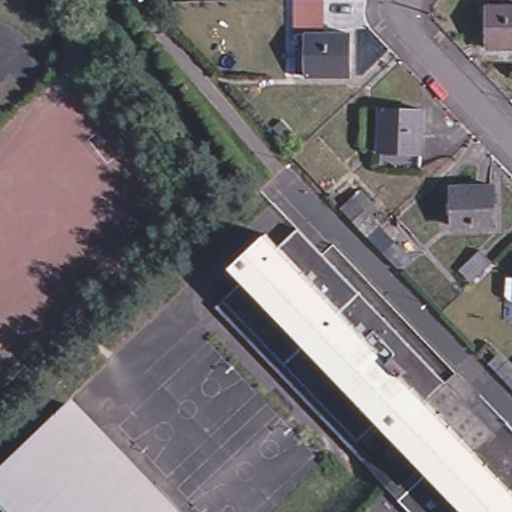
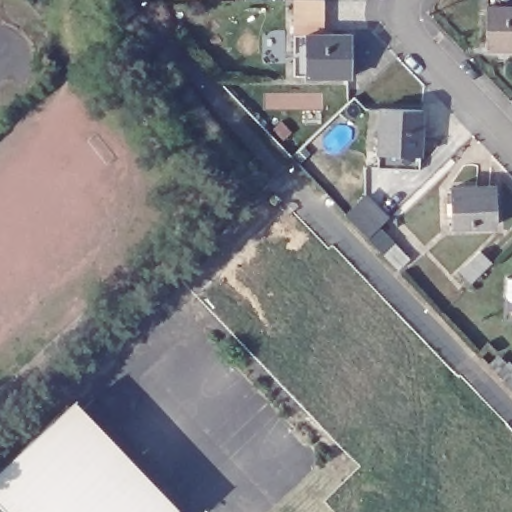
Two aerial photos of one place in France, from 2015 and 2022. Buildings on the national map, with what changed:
unchanged [(489,46),(490,5),(512,6),(512,47),(489,46)]
unchanged [(352,78),(310,78),(297,78),(298,37),(311,37),(353,37),(352,78)]
unchanged [(392,155),(376,155),(377,111),(392,111),(435,112),(435,156),(392,155)]
unchanged [(456,226),(456,189),(500,189),(499,227),(456,226)]
unchanged [(370,240),(357,225),(345,213),(358,201),(370,215),(383,227),(400,245),(412,259),(400,270),(387,257),(370,240)]
demolished [(303,232),(450,387),(431,405),(283,251),(303,232)]
demolished [(283,251),(431,405),(512,490),(512,512),(467,512),(429,472),(379,420),(250,285),(237,271),(270,239),(283,251)]
unchanged [(432,304),(465,273),(485,255),(495,265),(475,283),(442,315),(432,304)]
demolished [(357,441),(227,306),(250,285),(379,420),(357,441)]
unchanged [(0,468),(65,405),(92,432),(169,512),(26,512),(0,485),(0,468)]

